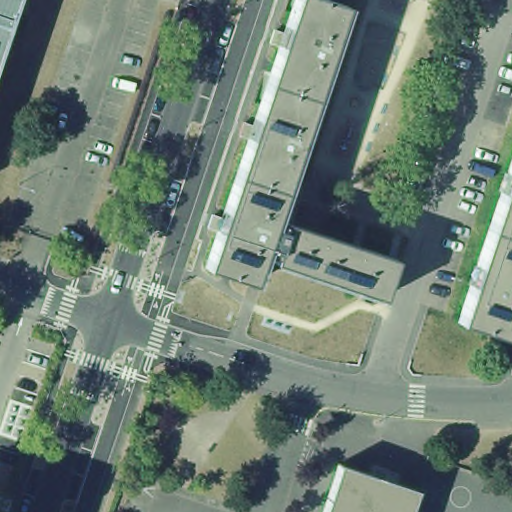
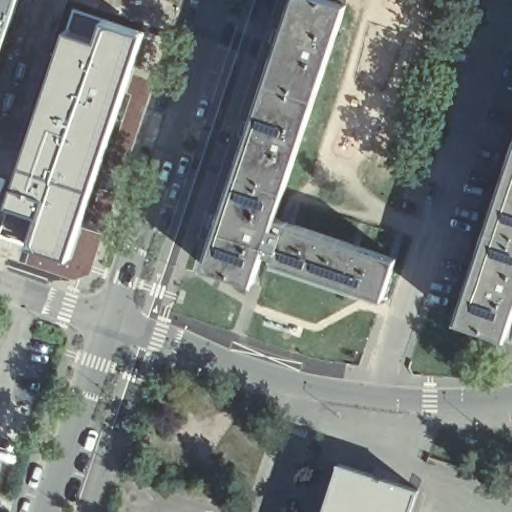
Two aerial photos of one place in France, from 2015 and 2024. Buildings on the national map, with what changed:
unchanged [(0,0),(11,0),(0,32),(0,0)]
unchanged [(341,0),(337,9),(340,10),(269,221),(390,263),(377,303),(269,265),(270,261),(257,258),(247,288),(200,272),(291,0),(309,0),(320,4),(321,0),(341,0)]
new [(110,20),(147,33),(132,75),(155,84),(132,154),(110,146),(83,229),(103,234),(90,275),(71,280),(25,265),(32,247),(0,236),(12,204),(74,9),(110,20)]
unchanged [(452,322),(512,145),(512,299),(499,338),(452,322)]
unchanged [(410,491),(402,512),(317,512),(332,467),(329,467),(330,464),(410,491)]

